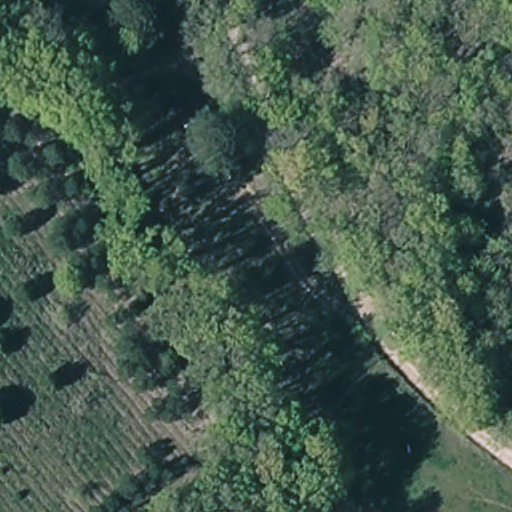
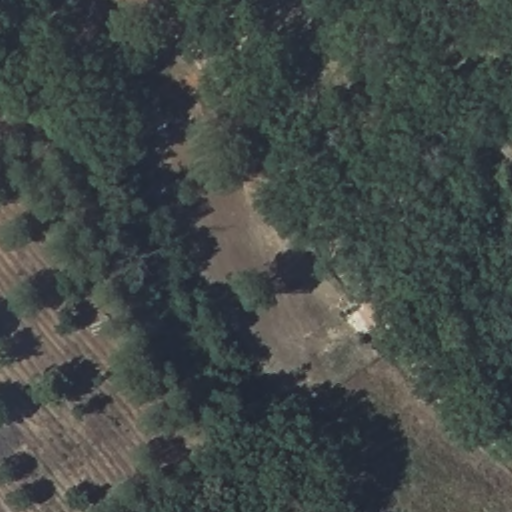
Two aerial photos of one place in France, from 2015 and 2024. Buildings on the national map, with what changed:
unchanged [(175,104),(189,96),(205,126),(193,132),(175,104)]

